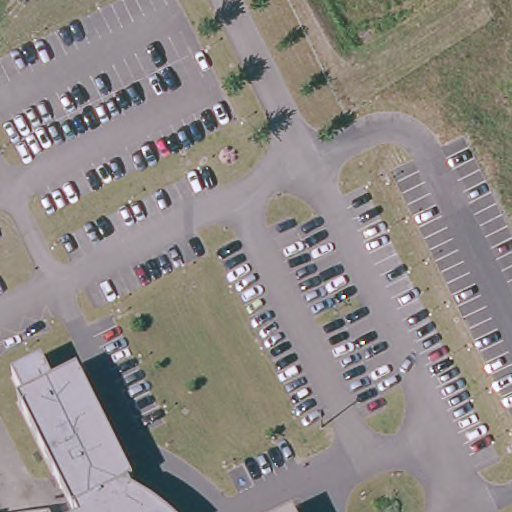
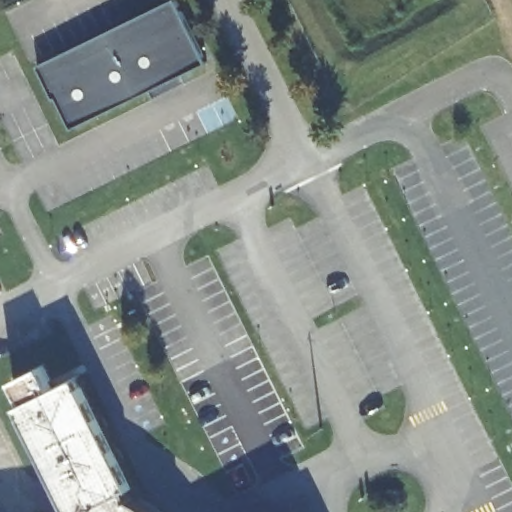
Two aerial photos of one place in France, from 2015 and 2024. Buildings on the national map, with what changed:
new [(210,67),(70,134),(40,67),(178,0),(210,67)]
unchanged [(77,512),(58,474),(23,401),(29,398),(18,376),(48,362),(58,384),(80,374),(137,494),(160,508),(165,512),(79,512),(79,511),(77,512)]

